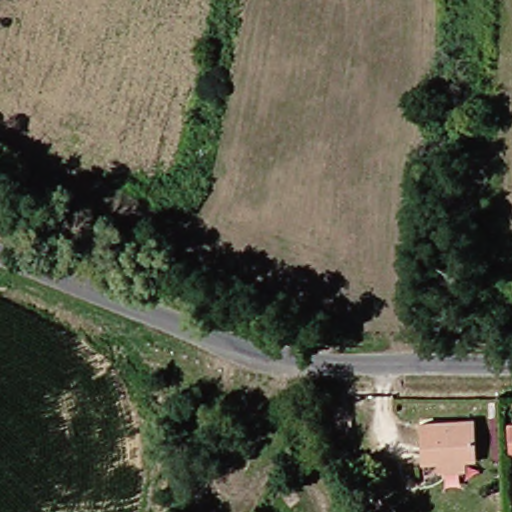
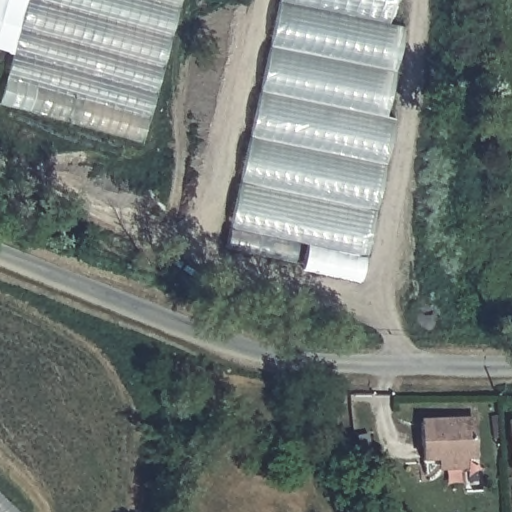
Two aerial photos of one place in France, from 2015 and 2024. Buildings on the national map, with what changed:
new [(0,95),(11,54),(0,52),(0,0),(181,0),(144,145),(0,106),(0,95)]
new [(277,2),(277,0),(398,0),(392,26),(406,28),(387,119),(396,120),(361,287),(300,272),(301,267),(224,250),(277,2)]
unchanged [(512,407),(512,439),(500,438),(500,407),(512,407)]
unchanged [(427,477),(427,464),(413,464),(416,426),(466,428),(463,466),(454,465),(453,478),(427,477)]
new [(0,512),(0,495),(17,512),(0,512)]

